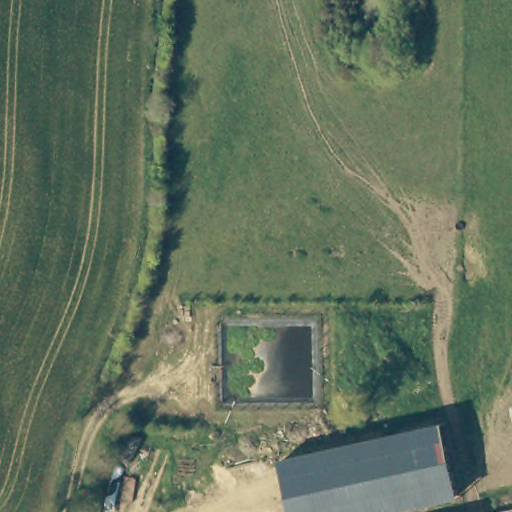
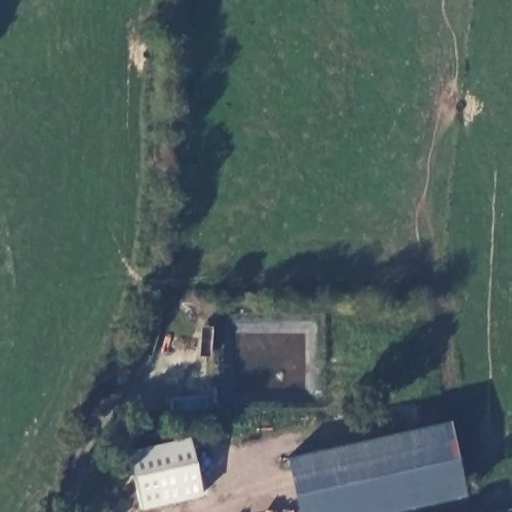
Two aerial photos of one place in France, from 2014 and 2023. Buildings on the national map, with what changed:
unchanged [(394,512),(300,512),(289,458),(452,421),(471,495),(394,512)]
new [(141,510),(128,451),(188,437),(204,497),(141,510)]

